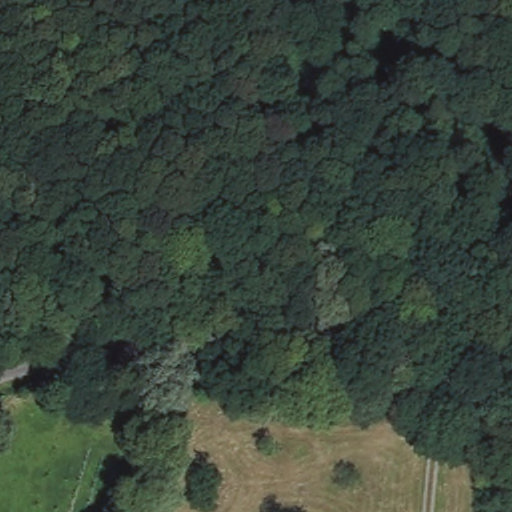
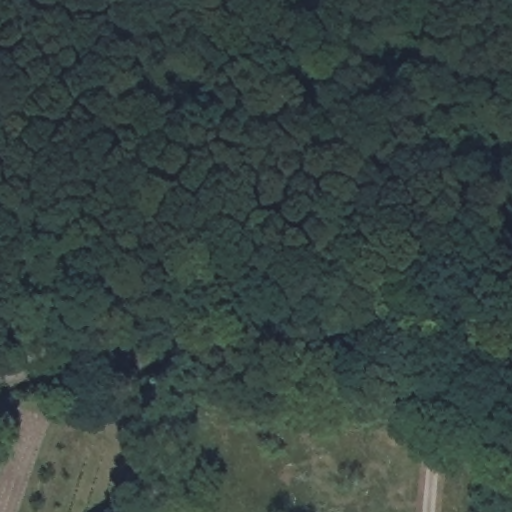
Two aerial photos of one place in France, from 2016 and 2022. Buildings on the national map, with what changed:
[]

